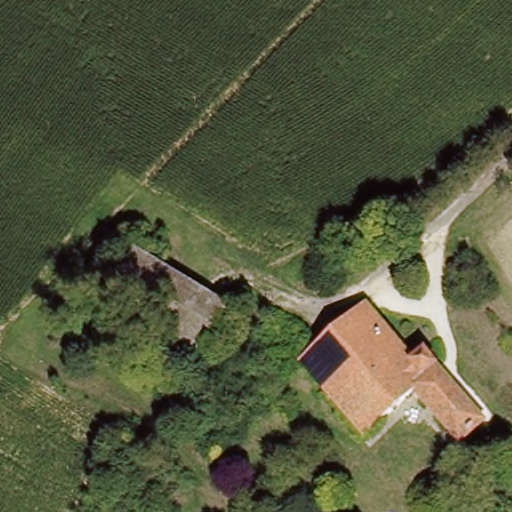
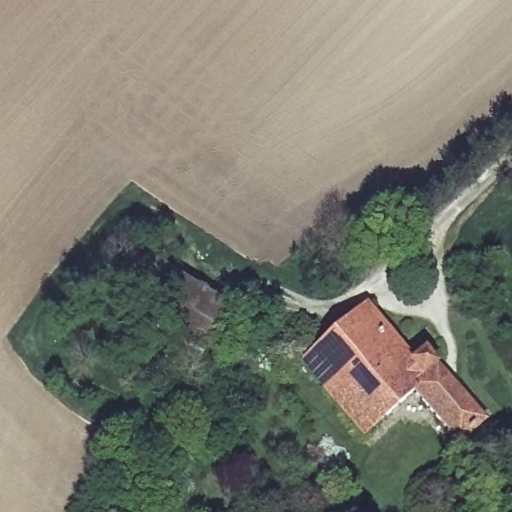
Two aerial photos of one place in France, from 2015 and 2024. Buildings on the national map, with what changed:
unchanged [(207,353),(105,300),(132,251),(234,302),(207,353)]
unchanged [(363,306),(410,358),(428,379),(412,393),(362,431),(298,361),(363,306)]
unchanged [(481,415),(455,440),(412,393),(428,379),(410,358),(423,349),(481,415)]

